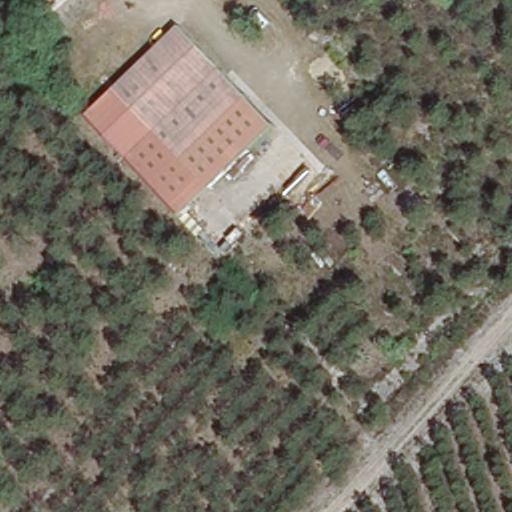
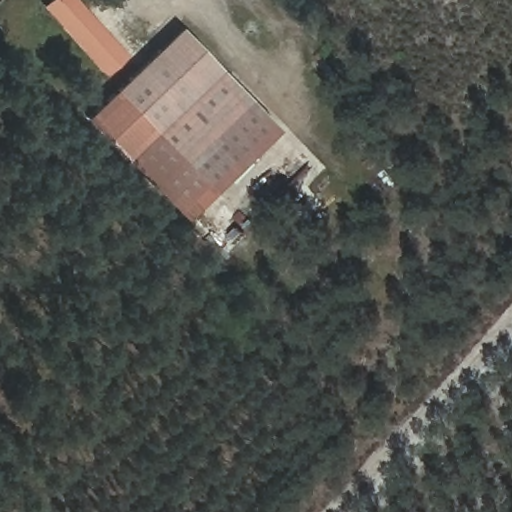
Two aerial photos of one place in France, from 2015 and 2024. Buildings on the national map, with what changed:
new [(104,75),(42,5),(48,0),(78,0),(126,55),(104,75)]
unchanged [(186,216),(90,117),(183,27),(278,129),(186,216)]

